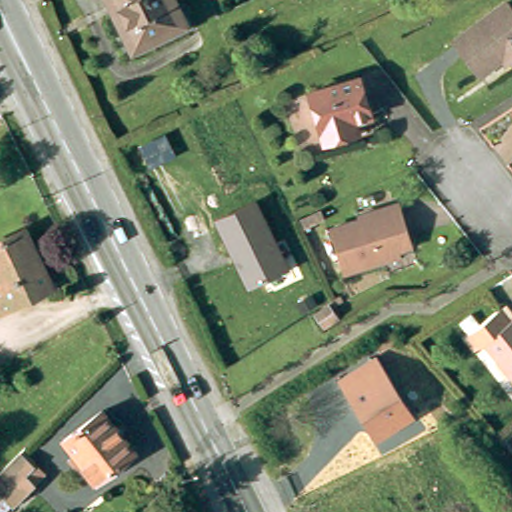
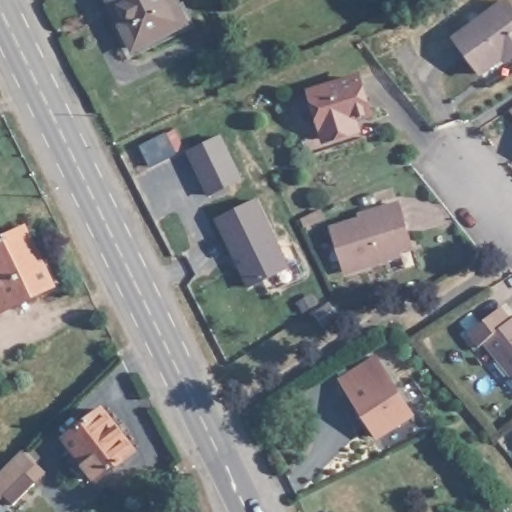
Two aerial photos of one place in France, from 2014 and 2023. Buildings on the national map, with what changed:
unchanged [(133,46),(111,0),(173,0),(183,22),(133,46)]
unchanged [(452,45),(507,9),(512,18),(512,56),(510,56),(507,51),(493,60),(471,74),(452,45)]
unchanged [(370,111),(355,118),(345,121),(347,129),(322,136),(308,90),(357,75),(370,111)]
new [(244,179),(209,196),(187,150),(222,133),(244,179)]
unchanged [(290,267),(247,289),(215,219),(258,200),(290,267)]
unchanged [(382,260),(347,271),(333,229),(372,216),(370,213),(400,205),(412,243),(396,248),(398,255),(382,260)]
unchanged [(57,289),(0,316),(0,287),(5,285),(0,275),(0,248),(32,234),(57,289)]
unchanged [(495,344),(486,350),(475,335),(508,312),(512,316),(512,368),(495,344)]
unchanged [(415,417),(377,441),(336,377),(375,353),(415,417)]
unchanged [(75,466),(80,461),(68,447),(105,417),(137,458),(100,487),(87,469),(81,475),(75,466)]
unchanged [(0,503),(0,469),(25,448),(50,484),(9,512),(7,512),(0,503)]
unchanged [(57,448),(65,457),(47,474),(39,464),(57,448)]

